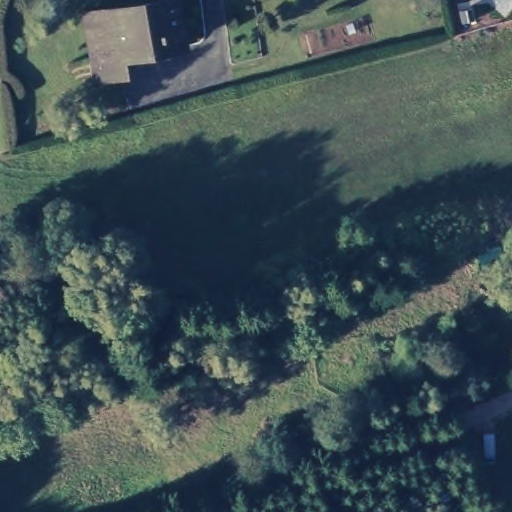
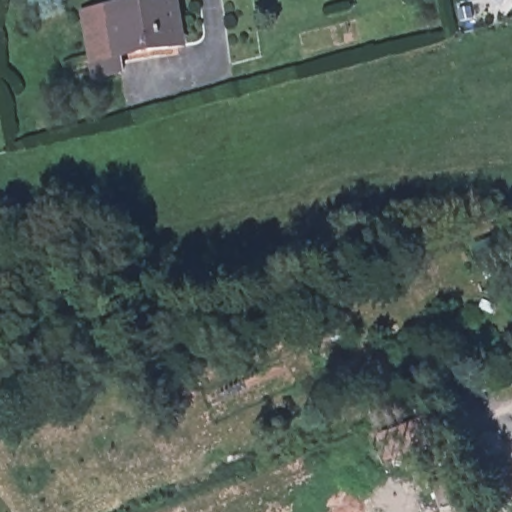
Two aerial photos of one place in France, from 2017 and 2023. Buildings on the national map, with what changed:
unchanged [(107,12),(107,9),(149,0),(170,0),(180,43),(115,56),(119,71),(92,78),(79,16),(107,12)]
unchanged [(492,239),(495,255),(477,261),(473,245),(492,239)]

